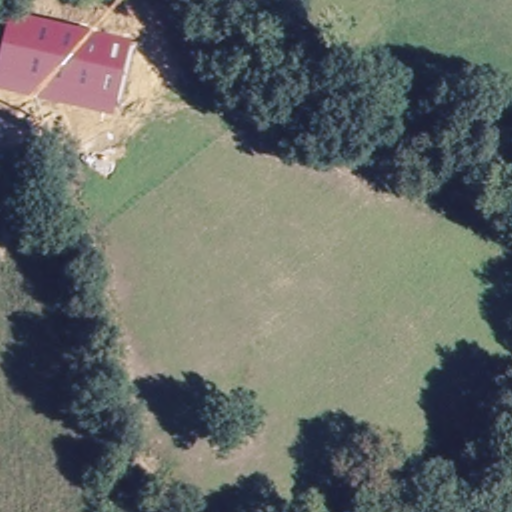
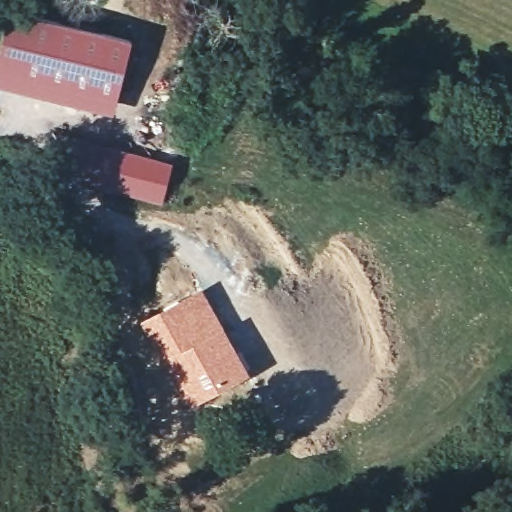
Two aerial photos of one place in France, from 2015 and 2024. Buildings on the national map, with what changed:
unchanged [(0,88),(0,54),(12,11),(132,41),(114,115),(0,88)]
new [(82,140),(174,163),(162,205),(72,183),(82,140)]
new [(203,288),(251,373),(182,410),(158,369),(137,322),(203,288)]

